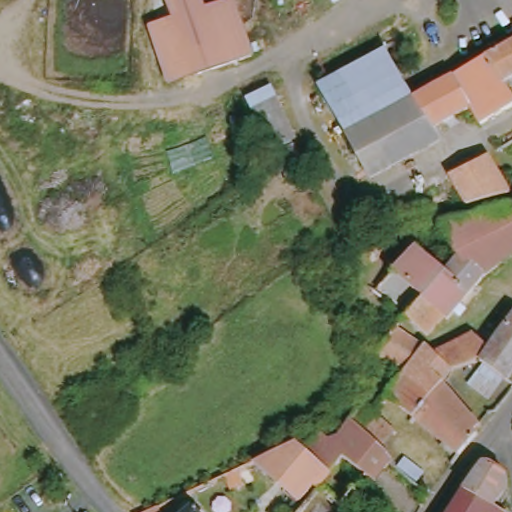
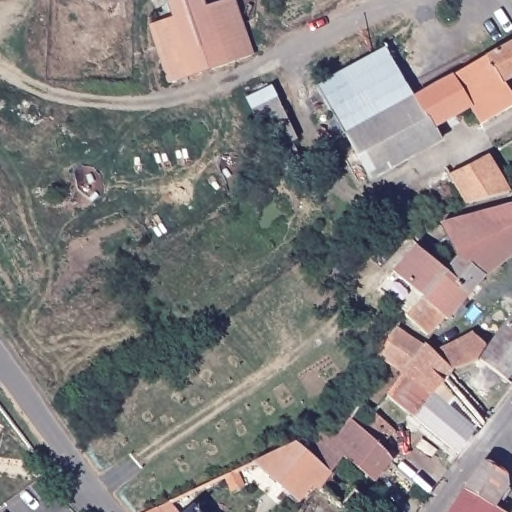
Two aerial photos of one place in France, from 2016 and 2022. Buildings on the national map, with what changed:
unchanged [(213,5),(226,0),(244,0),(252,21),(265,49),(185,84),(160,28),(184,18),(176,0),(211,0),(213,5)]
unchanged [(409,101),(360,127),(331,78),(394,42),(424,92),(409,101)]
unchanged [(502,80),(512,101),(512,103),(481,119),(478,116),(469,119),(462,108),(435,122),(442,138),(429,146),(424,129),(409,101),(424,92),(512,43),(512,75),(502,80)]
unchanged [(314,170),(291,183),(249,98),(276,86),(314,170)]
unchanged [(424,129),(429,146),(357,184),(334,141),(360,127),(409,101),(424,129)]
unchanged [(467,205),(458,174),(497,162),(506,194),(467,205)]
unchanged [(417,248),(443,269),(456,256),(440,225),(509,205),(512,209),(512,253),(477,281),(457,306),(447,319),(445,317),(426,337),(405,317),(409,313),(377,287),(392,272),(417,248)]
unchanged [(506,388),(482,361),(494,341),(512,322),(512,379),(506,388)]
unchanged [(434,356),(453,373),(447,391),(480,425),(477,438),(463,455),(389,396),(405,373),(380,358),(391,334),(395,330),(420,353),(424,348),(434,356)]
unchanged [(475,332),(487,344),(475,363),(453,373),(434,356),(475,332)]
unchanged [(390,468),(382,481),(342,455),(332,473),(304,452),(317,435),(329,444),(347,422),(360,404),(375,414),(390,428),(374,446),(393,464),(390,468)]
unchanged [(295,445),(304,452),(332,473),(320,493),(314,488),(299,503),(252,463),(295,445)]
unchanged [(462,484),(477,463),(492,460),(505,470),(509,484),(495,505),(462,484)]
unchanged [(227,473),(234,489),(220,495),(213,479),(227,473)]
unchanged [(495,505),(505,512),(446,512),(462,484),(495,505)]
unchanged [(168,512),(143,512),(162,504),(168,512)]
unchanged [(194,512),(202,506),(206,512),(194,512)]

